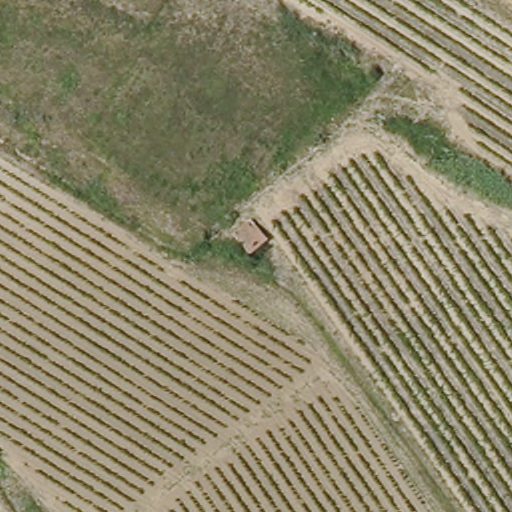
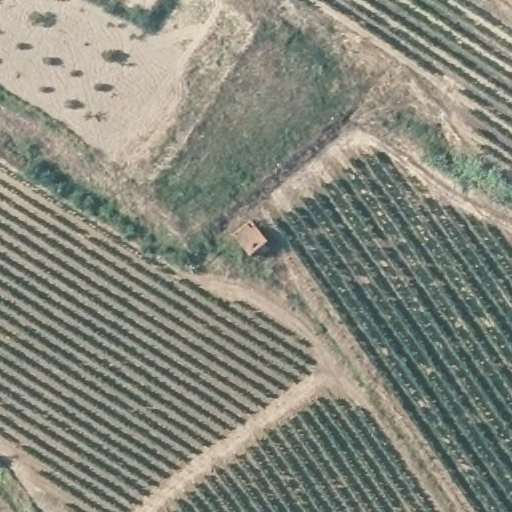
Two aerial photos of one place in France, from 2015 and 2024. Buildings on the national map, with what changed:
unchanged [(249,222),(255,218),(271,237),(264,242),(254,250),(239,232),(249,222)]

